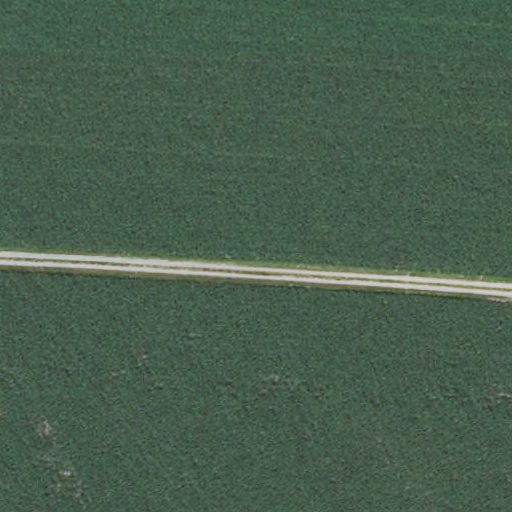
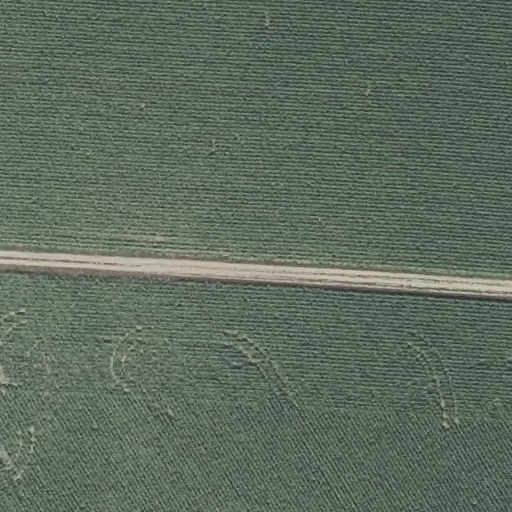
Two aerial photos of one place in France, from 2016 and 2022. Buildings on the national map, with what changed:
[]

